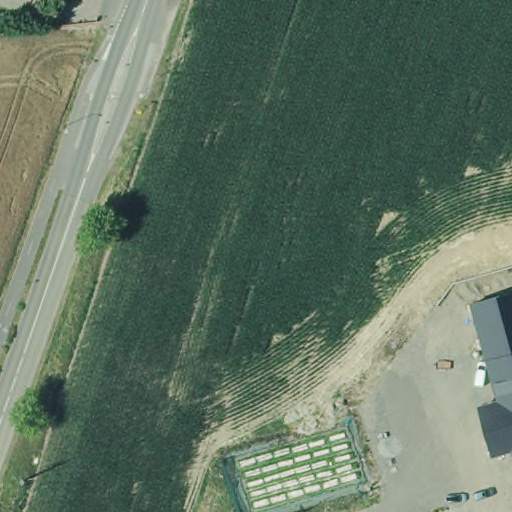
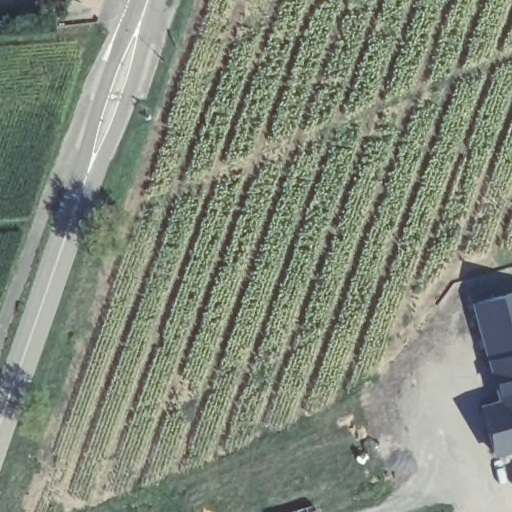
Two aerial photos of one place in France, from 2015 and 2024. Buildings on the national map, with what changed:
unchanged [(512,292),(512,455),(511,455),(510,450),(492,456),(478,406),(496,401),(470,303),(512,292)]

